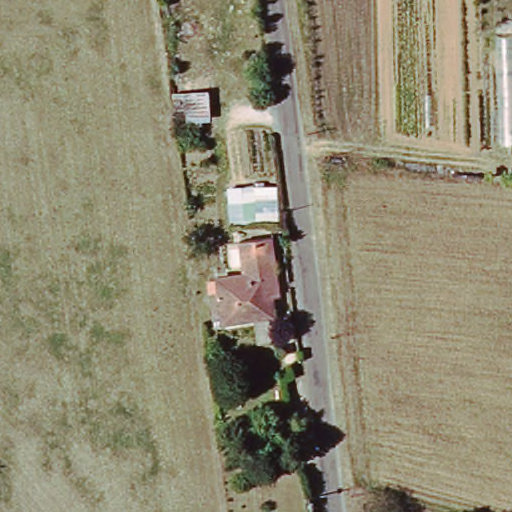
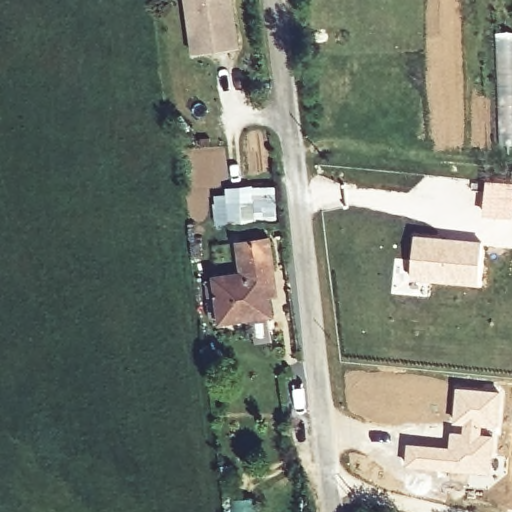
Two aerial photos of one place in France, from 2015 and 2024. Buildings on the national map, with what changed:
new [(240,50),(193,57),(186,0),(234,0),(240,50)]
demolished [(180,84),(180,80),(204,82),(205,107),(217,107),(216,116),(207,119),(206,128),(186,128),(181,100),(171,100),(171,85),(180,84)]
new [(512,182),(512,218),(480,215),(485,179),(512,182)]
new [(212,203),(227,201),(226,190),(275,184),(279,219),(216,225),(212,203)]
new [(413,232),(483,240),(478,287),(408,277),(413,232)]
unchanged [(267,301),(269,322),(218,327),(214,278),(241,276),(239,244),(270,240),(275,278),(277,300),(267,301)]
new [(406,441),(448,445),(450,430),(462,431),(463,424),(452,422),(455,385),(504,390),(491,474),(448,472),(405,467),(406,441)]

